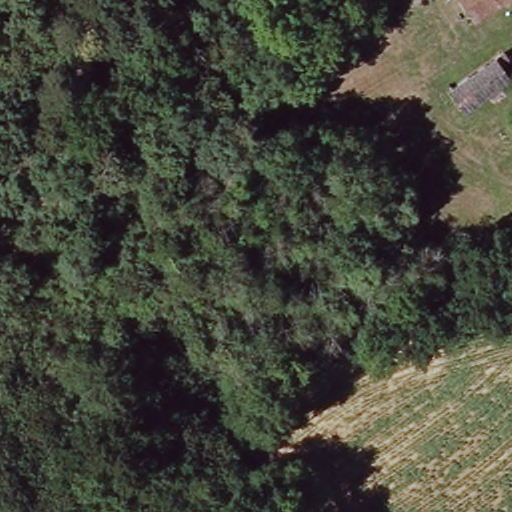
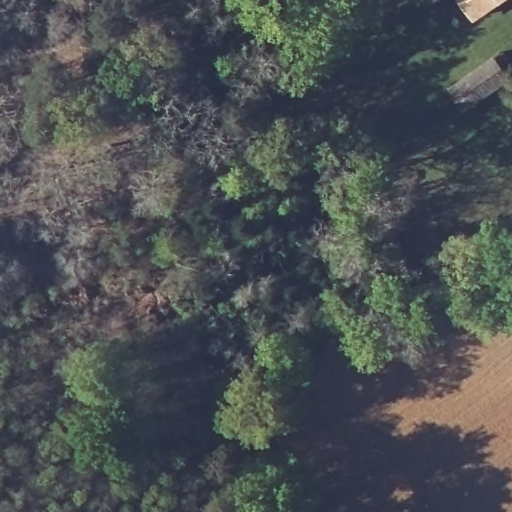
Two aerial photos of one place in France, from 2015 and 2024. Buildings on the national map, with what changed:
unchanged [(468,0),(509,0),(482,20),(468,0)]
unchanged [(462,83),(509,51),(512,56),(512,83),(479,105),(458,119),(442,96),(462,83)]

